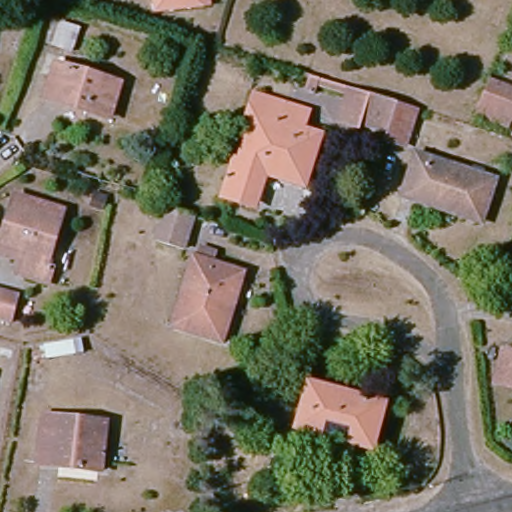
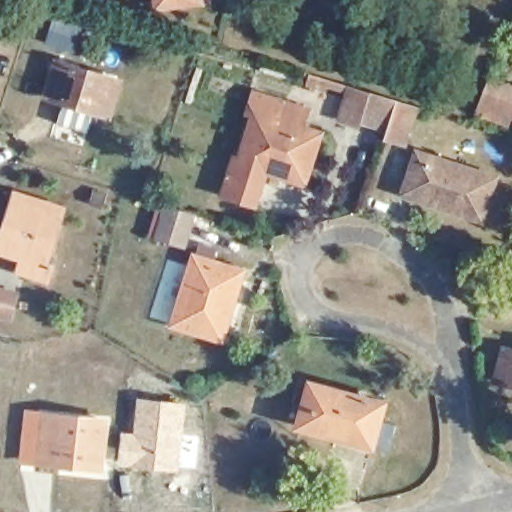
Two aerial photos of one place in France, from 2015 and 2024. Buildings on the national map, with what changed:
unchanged [(157,12),(155,0),(214,0),(215,4),(157,12)]
unchanged [(10,40),(17,10),(43,17),(35,46),(10,40)]
unchanged [(114,82),(105,117),(44,101),(52,66),(114,82)]
unchanged [(466,113),(467,110),(470,104),(479,79),(512,87),(512,115),(503,112),(501,121),(466,113)]
unchanged [(252,197),(230,190),(252,115),(245,114),(251,92),(280,100),(275,122),(316,134),(312,149),(317,150),(307,186),(293,181),(260,172),(252,197)]
unchanged [(406,150),(380,144),(358,137),(341,132),(351,95),(369,100),(392,105),(417,111),(406,150)]
unchanged [(481,218),(402,194),(412,162),(415,152),(458,165),(493,176),(481,218)]
unchanged [(60,206),(47,252),(55,254),(51,269),(22,261),(27,247),(12,242),(0,239),(10,206),(14,192),(60,206)]
unchanged [(184,245),(157,237),(164,210),(191,218),(184,245)]
unchanged [(245,270),(222,346),(166,329),(190,254),(245,270)]
unchanged [(512,262),(512,282),(502,271),(512,262)]
unchanged [(8,323),(0,321),(0,293),(15,297),(8,323)]
unchanged [(508,390),(512,376),(512,391),(508,390)]
unchanged [(375,402),(370,442),(299,433),(304,393),(375,402)]
new [(120,430),(132,432),(135,397),(186,402),(180,471),(116,465),(120,430)]
unchanged [(104,420),(102,467),(39,465),(42,417),(104,420)]

